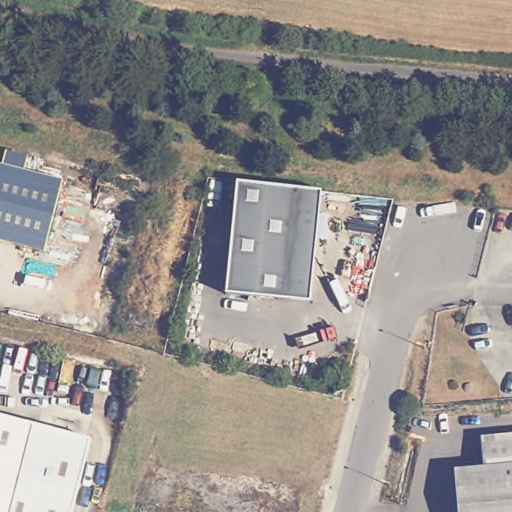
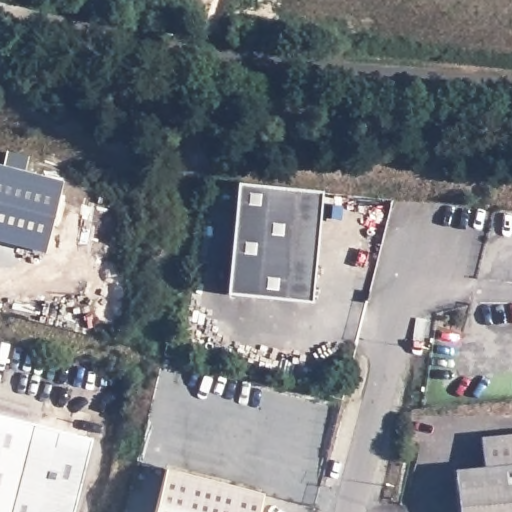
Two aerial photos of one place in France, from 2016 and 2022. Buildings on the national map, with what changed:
unchanged [(29,156),(25,171),(64,181),(44,251),(0,239),(0,164),(3,164),(7,150),(29,156)]
unchanged [(240,183),(301,189),(289,301),(228,295),(240,183)]
unchanged [(301,189),(326,192),(314,304),(289,301),(301,189)]
unchanged [(73,512),(0,512),(0,417),(92,441),(73,512)]
unchanged [(512,436),(512,512),(460,512),(457,473),(487,469),(482,438),(512,436)]
new [(167,469),(265,493),(260,512),(156,512),(167,469)]

